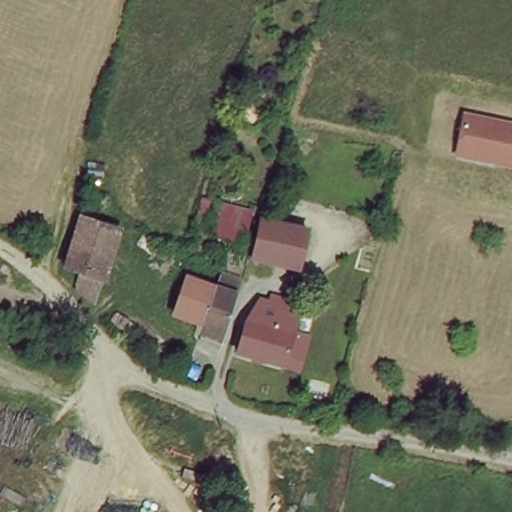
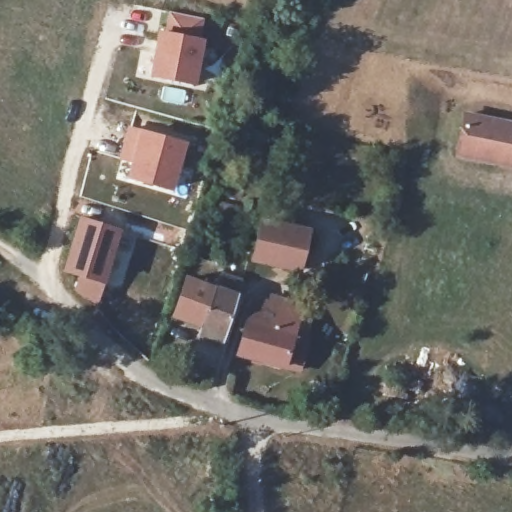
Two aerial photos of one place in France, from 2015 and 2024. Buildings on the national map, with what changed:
new [(157,32),(162,32),(168,11),(204,20),(200,39),(205,40),(196,86),(149,76),(157,32)]
unchanged [(454,151),(465,107),(512,117),(512,164),(454,151)]
new [(139,130),(187,143),(173,192),(127,178),(139,130)]
unchanged [(257,211),(250,235),(228,229),(233,204),(257,211)]
unchanged [(117,231),(103,294),(81,289),(86,267),(64,260),(73,219),(117,231)]
unchanged [(254,267),(263,226),(308,239),(302,262),(297,277),(254,267)]
unchanged [(214,286),(224,289),(221,302),(238,307),(229,345),(201,335),(211,297),(214,286)]
unchanged [(201,335),(175,325),(186,290),(211,297),(201,335)]
unchanged [(308,352),(302,372),(241,356),(252,316),(256,301),(300,312),(296,328),(291,347),(308,352)]

